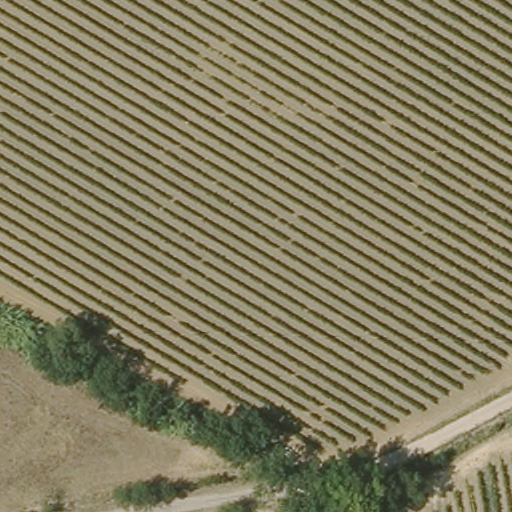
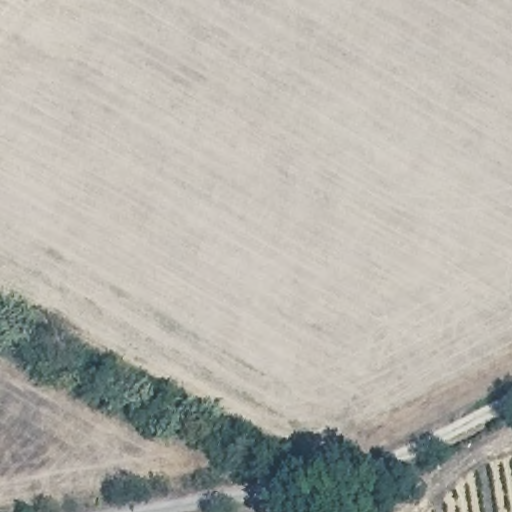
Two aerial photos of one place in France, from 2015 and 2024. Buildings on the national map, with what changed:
unchanged [(366,512),(337,512),(336,504),(364,500),(366,512)]

